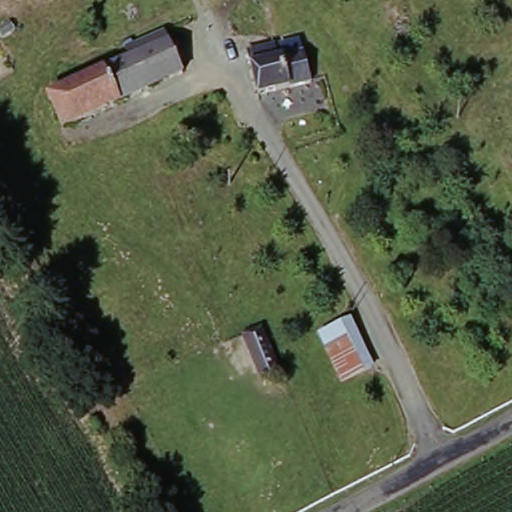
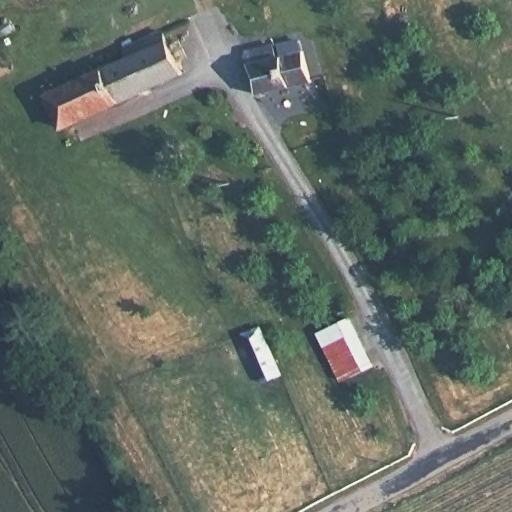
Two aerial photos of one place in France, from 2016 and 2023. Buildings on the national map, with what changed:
unchanged [(187,79),(67,132),(52,97),(133,61),(125,41),(163,25),(187,79)]
unchanged [(315,82),(261,94),(250,50),(281,45),(285,55),(306,50),(315,82)]
unchanged [(374,369),(348,383),(325,334),(351,322),(374,369)]
unchanged [(282,379),(266,386),(245,339),(262,330),(282,379)]

